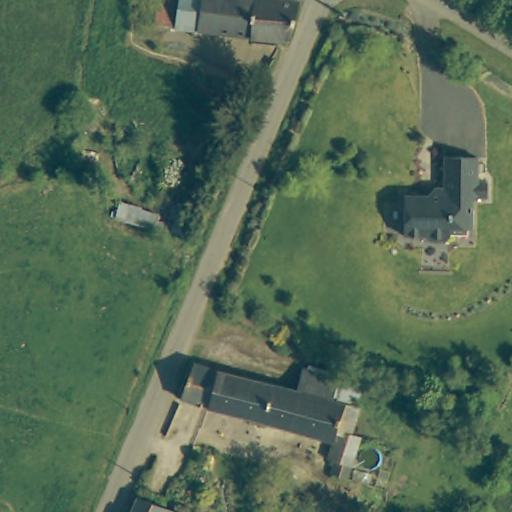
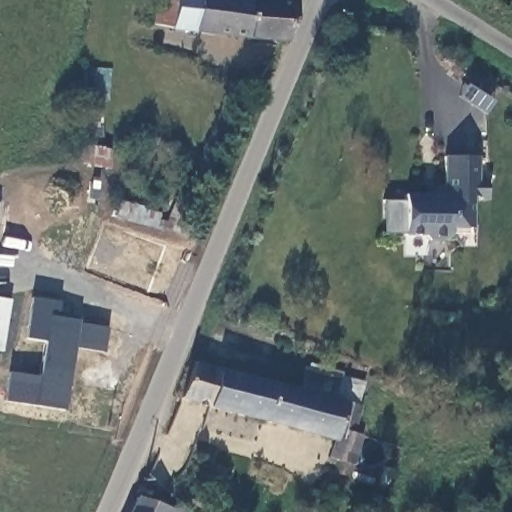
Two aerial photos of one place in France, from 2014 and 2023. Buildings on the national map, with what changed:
unchanged [(246,36),(189,32),(169,31),(171,0),(249,0),(246,36)]
unchanged [(246,36),(249,0),(286,0),(285,37),(274,37),(246,36)]
unchanged [(422,237),(417,231),(401,230),(403,191),(431,192),(442,183),(448,184),(450,154),(480,155),(478,180),(488,180),(488,196),(470,195),(467,227),(445,226),(444,234),(440,238),(422,237)]
unchanged [(199,181),(188,207),(199,214),(187,239),(170,232),(127,222),(133,203),(168,217),(187,176),(199,181)]
new [(9,373),(39,378),(44,343),(25,341),(31,299),(59,303),(57,318),(77,322),(77,325),(107,329),(103,353),(73,349),(64,412),(4,403),(9,373)]
unchanged [(258,376),(272,380),(261,420),(179,394),(190,354),(218,363),(222,348),(238,353),(234,368),(258,376)]
unchanged [(330,441),(261,420),(272,380),(286,383),(302,388),(309,368),(337,379),(332,397),(357,406),(348,433),(362,437),(352,467),(328,458),(333,442),(330,441)]
unchanged [(187,512),(131,512),(141,491),(187,512)]

